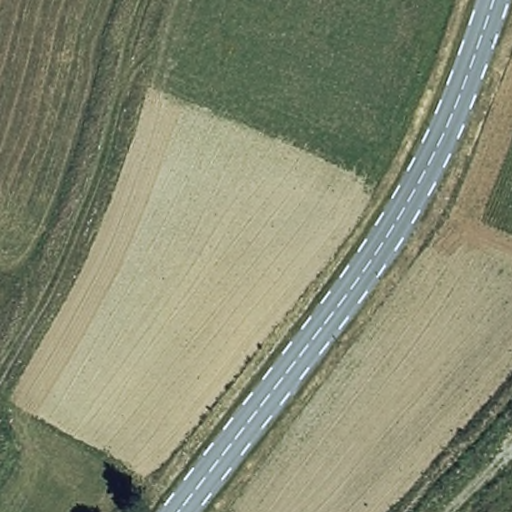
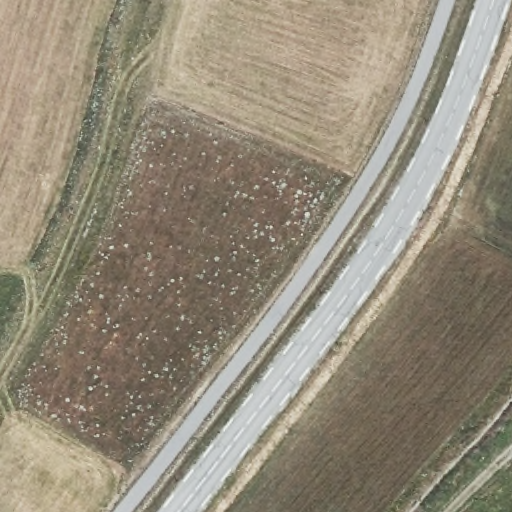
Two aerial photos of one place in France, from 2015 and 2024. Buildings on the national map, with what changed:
[]

